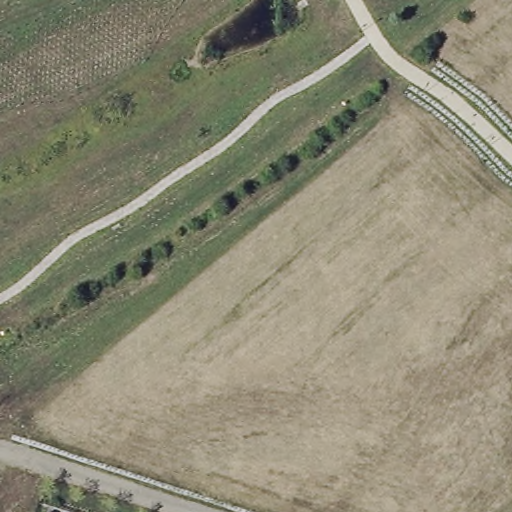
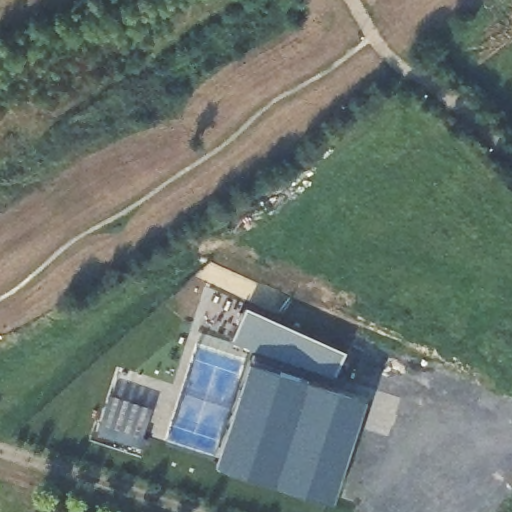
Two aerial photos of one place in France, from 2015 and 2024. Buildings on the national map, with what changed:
new [(252,357),(367,394),(334,498),(219,461),(252,357)]

